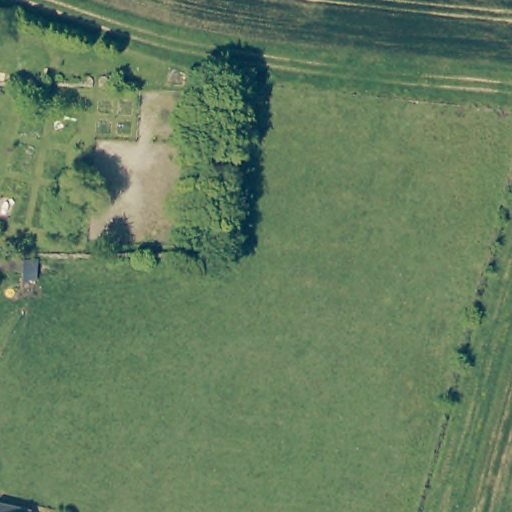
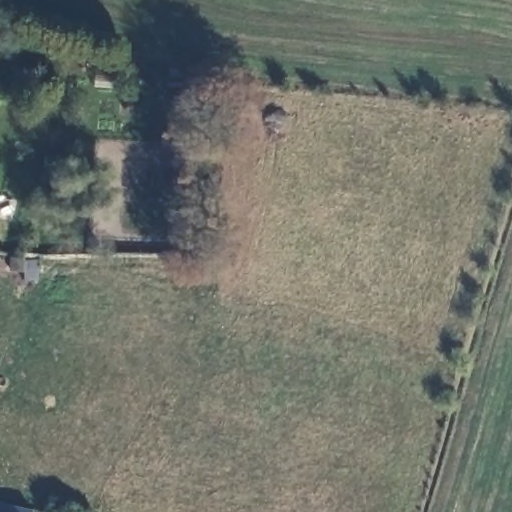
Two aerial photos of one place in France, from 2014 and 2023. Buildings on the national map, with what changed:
unchanged [(34,509),(33,512),(0,512),(0,504),(26,507),(34,509)]

